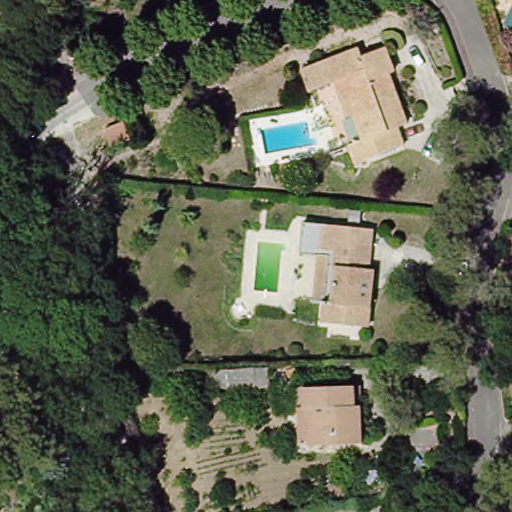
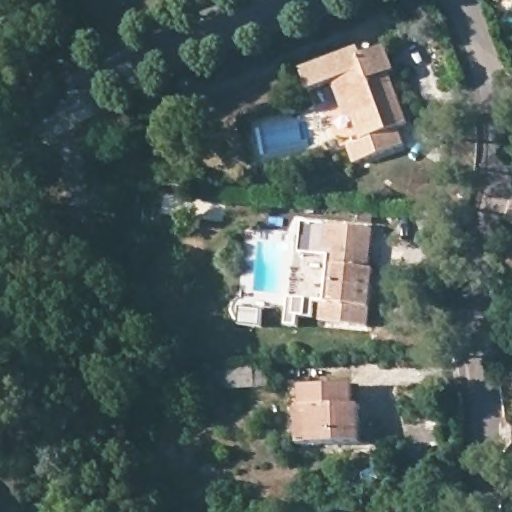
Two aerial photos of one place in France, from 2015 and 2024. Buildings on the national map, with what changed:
unchanged [(399,127),(405,147),(357,166),(350,147),(365,142),(341,81),(311,93),(303,72),(360,51),(363,58),(387,49),(397,72),(389,74),(409,124),(399,127)]
unchanged [(132,141),(112,148),(106,131),(125,122),(132,141)]
unchanged [(270,208),(260,207),(261,201),(270,201),(270,208)]
unchanged [(325,254),(311,252),(313,222),(380,227),(375,266),(380,266),(374,322),(329,318),(332,299),(321,297),(325,254)]
unchanged [(307,447),(307,410),(312,411),(312,389),(362,387),(369,387),(369,408),(370,445),(307,447)]

